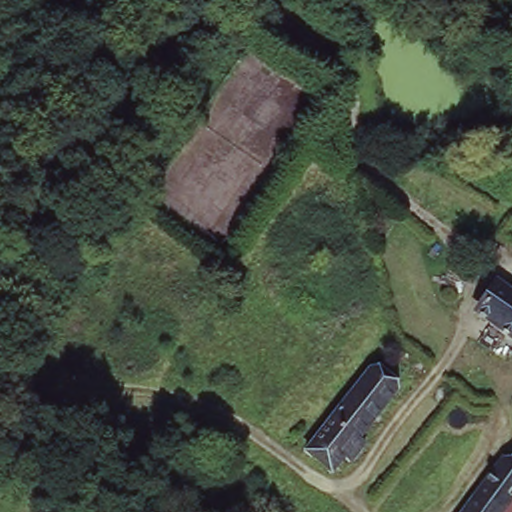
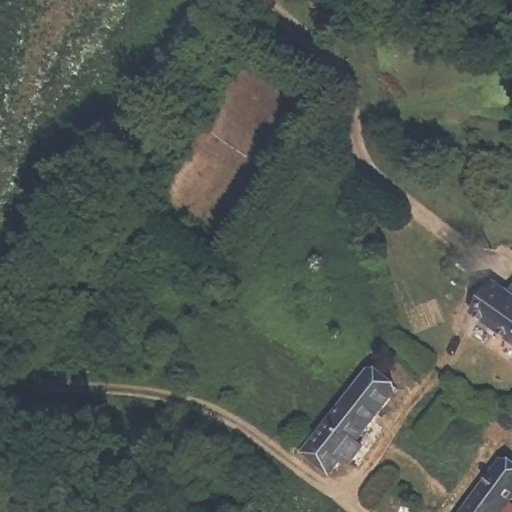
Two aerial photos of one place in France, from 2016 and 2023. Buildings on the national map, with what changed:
unchanged [(473,302),(499,269),(512,279),(512,331),(473,302)]
unchanged [(303,443),(366,355),(377,363),(381,357),(403,371),(363,427),(369,431),(353,454),(347,449),(335,464),(303,443)]
unchanged [(448,512),(503,442),(512,448),(512,512),(448,512)]

